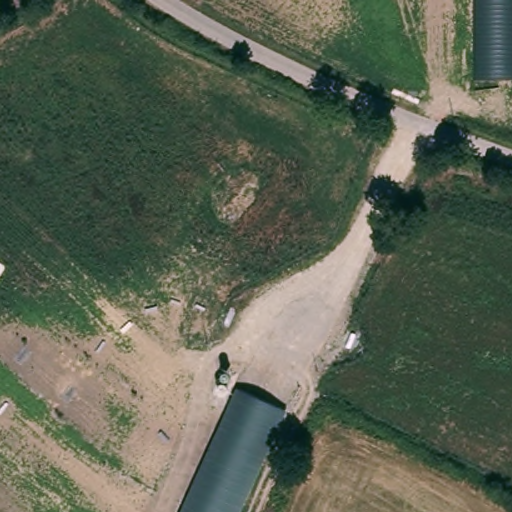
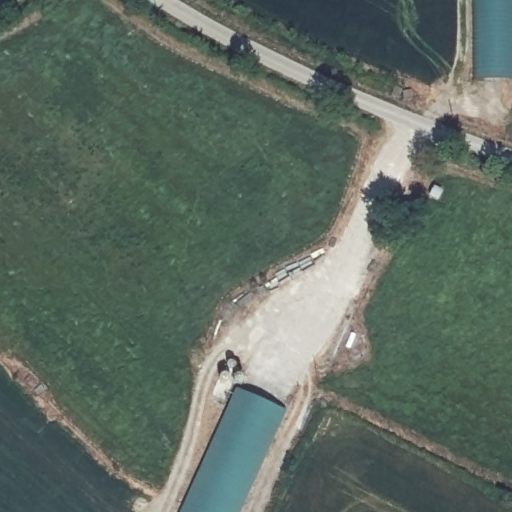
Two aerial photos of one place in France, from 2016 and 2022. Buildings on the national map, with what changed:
unchanged [(512,0),(512,78),(477,78),(477,0),(512,0)]
unchanged [(237,390),(284,410),(239,512),(183,512),(237,390)]

